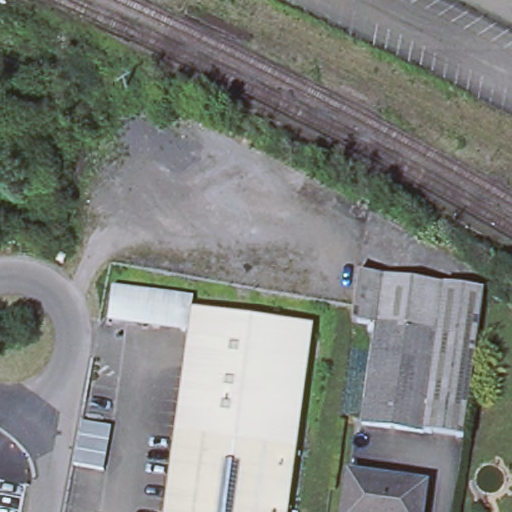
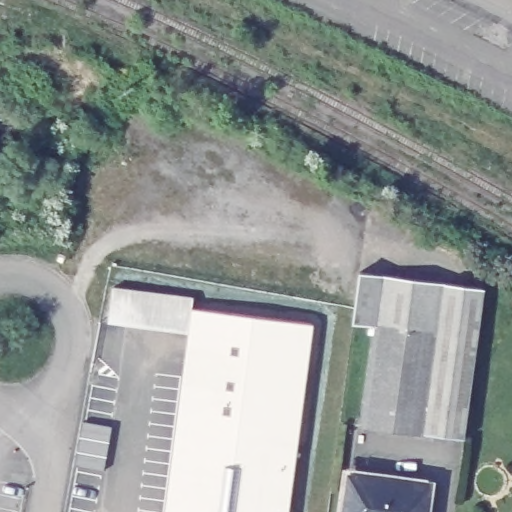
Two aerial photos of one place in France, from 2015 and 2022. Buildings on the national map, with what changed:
unchanged [(353,321),(355,305),(360,271),(485,288),(465,437),(424,431),(423,432),(362,424),(377,325),(353,321)]
unchanged [(107,321),(112,287),(191,296),(190,306),(192,307),(188,332),(107,321)]
unchanged [(192,307),(312,322),(296,448),(175,432),(188,332),(192,307)]
unchanged [(296,448),(288,512),(164,512),(175,432),(296,448)]
unchanged [(427,485),(423,512),(345,512),(350,474),(427,485)]

